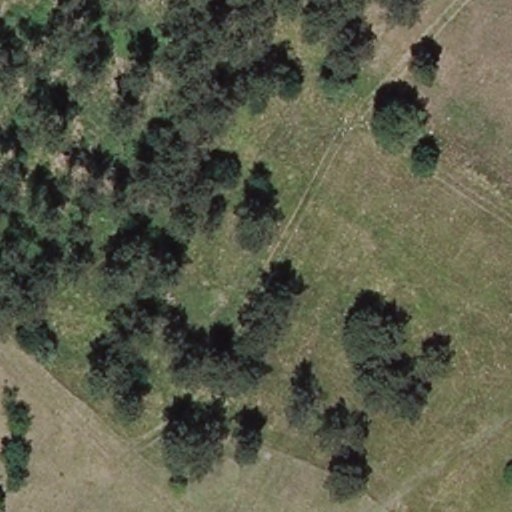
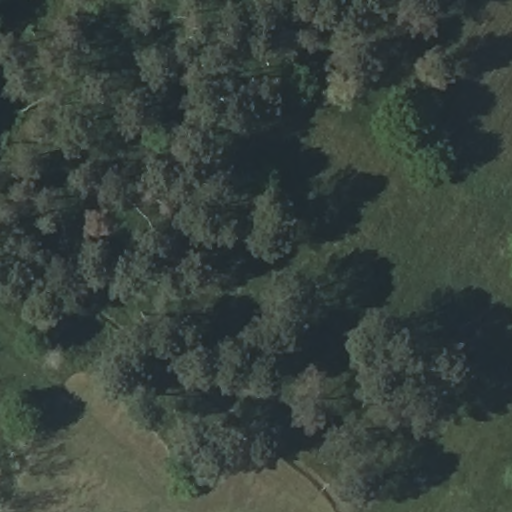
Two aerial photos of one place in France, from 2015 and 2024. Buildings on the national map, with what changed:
[]

